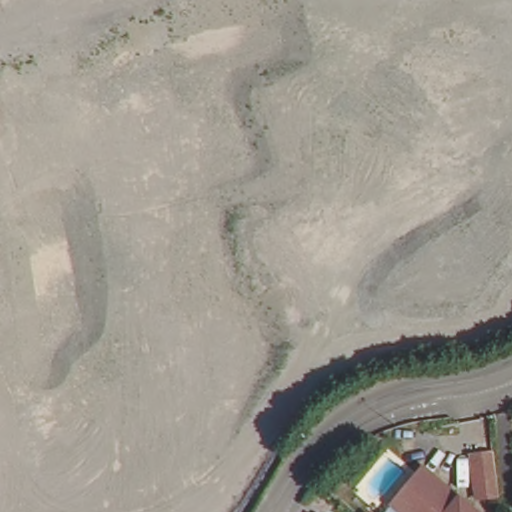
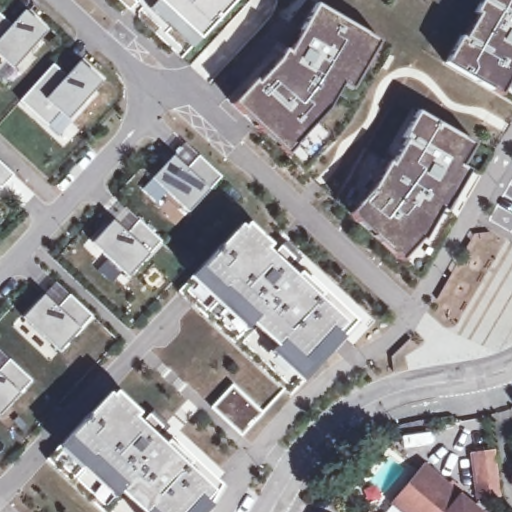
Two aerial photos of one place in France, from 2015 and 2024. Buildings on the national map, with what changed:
new [(159,0),(234,0),(199,38),(159,0)]
new [(512,0),(512,76),(502,94),(448,63),(485,0),(512,0)]
new [(254,81),(258,85),(278,63),(286,49),(292,54),(316,7),(379,43),(353,90),(343,85),(328,110),(286,155),(233,105),(254,81)]
new [(44,29),(34,41),(37,44),(13,69),(6,63),(0,70),(0,15),(11,26),(25,11),(44,29)]
new [(66,76),(80,62),(99,80),(88,91),(92,95),(68,121),(61,114),(49,128),(20,101),(53,65),(66,76)]
new [(372,193),(388,164),(392,166),(409,140),(403,138),(419,111),(476,144),(462,168),(470,173),(449,212),(444,208),(426,242),(422,238),(401,260),(351,213),(372,193)]
new [(222,178),(189,213),(153,179),(173,156),(188,169),(199,156),(222,178)]
new [(0,189),(0,188),(0,162),(13,175),(0,189)]
new [(161,242),(129,278),(92,244),(113,221),(127,234),(139,221),(161,242)]
new [(179,292),(241,226),(274,256),(281,247),(360,321),(290,397),(179,292)]
new [(92,317),(59,352),(23,318),(44,296),(58,308),(69,296),(92,317)]
new [(0,415),(0,370),(9,361),(31,382),(0,415)]
new [(211,409),(233,386),(263,414),(241,437),(211,409)]
new [(141,424),(149,415),(163,427),(155,436),(218,495),(209,512),(102,512),(46,460),(109,394),(141,424)]
unchanged [(476,491),(472,459),(492,456),(498,498),(488,500),(478,501),(476,491)]
unchanged [(483,512),(409,512),(396,501),(428,465),(483,512)]

